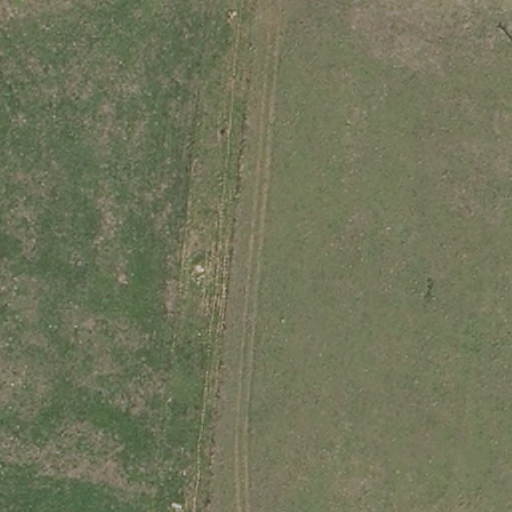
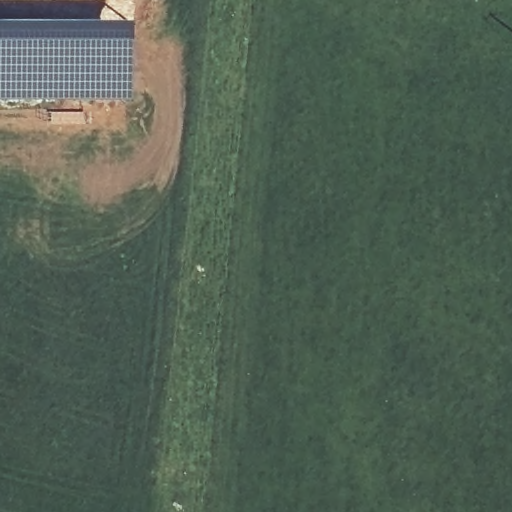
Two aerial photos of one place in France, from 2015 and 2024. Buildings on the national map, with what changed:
new [(132,19),(133,99),(66,99),(0,103),(0,18),(50,18),(132,19)]

